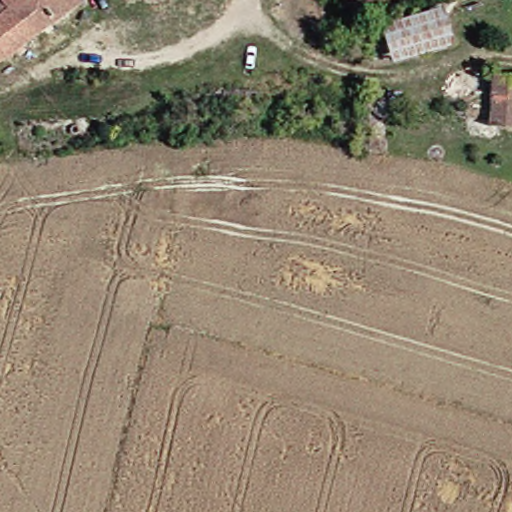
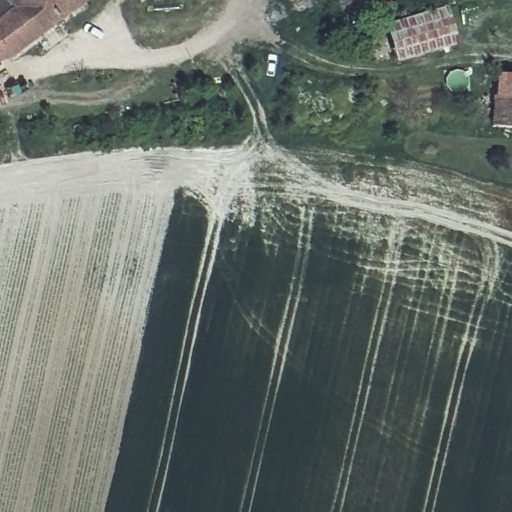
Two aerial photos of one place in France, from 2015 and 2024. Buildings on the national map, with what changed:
unchanged [(0,63),(0,0),(84,0),(2,63),(0,63)]
unchanged [(343,0),(369,0),(344,6),(343,0)]
unchanged [(460,39),(379,62),(370,31),(452,6),(460,39)]
unchanged [(505,19),(512,18),(512,43),(509,44),(505,19)]
unchanged [(492,100),(482,103),(480,79),(512,76),(512,127),(493,129),(492,100)]

